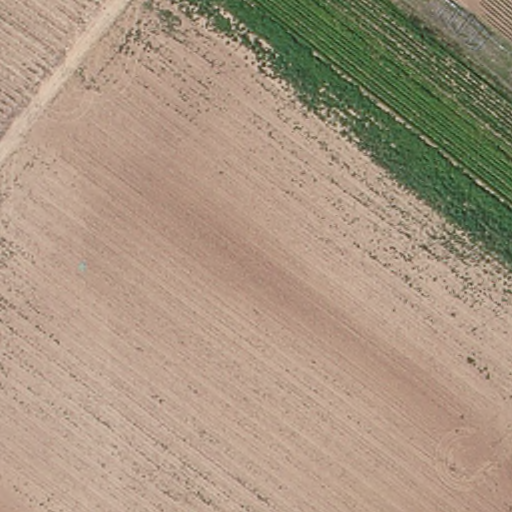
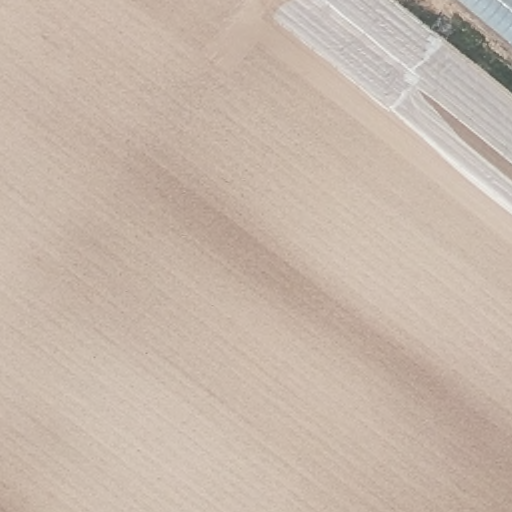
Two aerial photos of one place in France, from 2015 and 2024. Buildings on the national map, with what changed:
new [(453,0),(512,0),(512,49),(453,0)]

